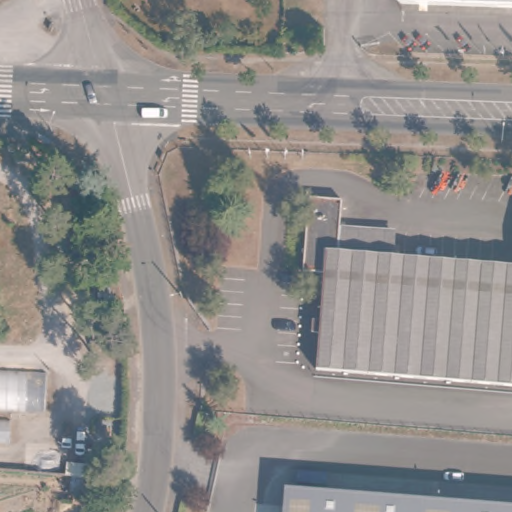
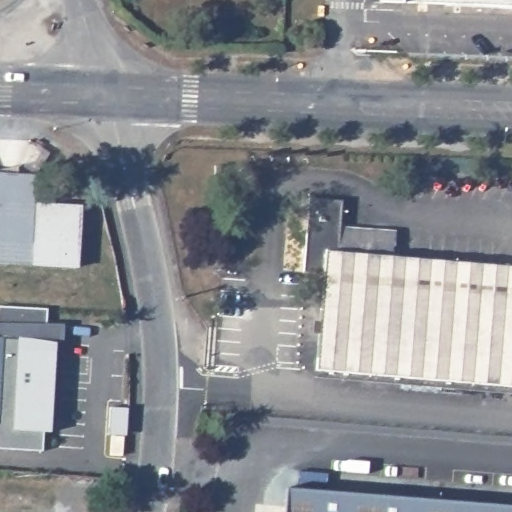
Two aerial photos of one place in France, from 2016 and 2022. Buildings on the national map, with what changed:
unchanged [(418,0),(512,0),(512,6),(418,1),(418,0)]
new [(0,263),(0,172),(36,173),(35,202),(79,204),(75,267),(30,264),(0,263)]
unchanged [(323,279),(302,277),(307,207),(345,210),(343,228),(341,258),(400,262),(512,270),(512,387),(316,374),(323,279)]
unchanged [(402,232),(400,262),(341,258),(343,228),(402,232)]
new [(1,335),(1,338),(17,339),(17,335),(53,341),(48,431),(43,431),(41,449),(0,447),(0,335),(1,335)]
demolished [(60,373),(56,419),(14,416),(10,450),(0,449),(0,373),(60,373)]
unchanged [(512,510),(512,512),(283,512),(284,493),(512,510)]

